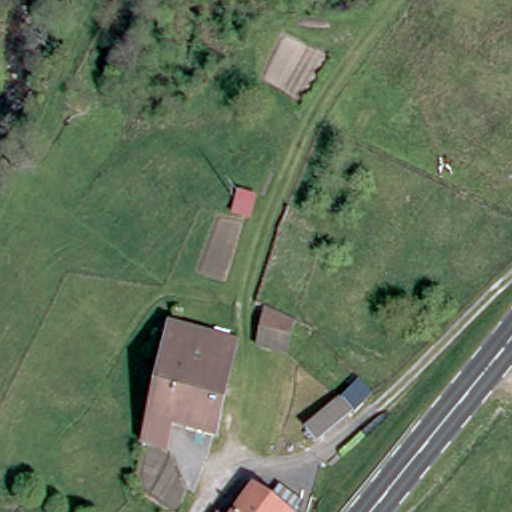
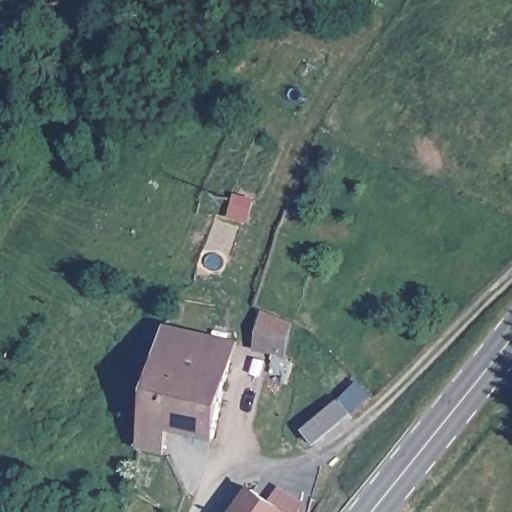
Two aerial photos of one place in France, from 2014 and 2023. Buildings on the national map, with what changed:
unchanged [(261,312),(290,319),(282,351),(254,345),(261,312)]
unchanged [(166,325),(233,343),(230,361),(161,344),(166,325)]
unchanged [(137,442),(143,419),(161,344),(230,361),(211,436),(168,425),(163,449),(137,442)]
unchanged [(361,382),(372,397),(310,441),(302,428),(361,382)]
unchanged [(280,512),(228,512),(247,485),(282,509),(280,512)]
unchanged [(282,509),(286,512),(280,512),(282,509)]

